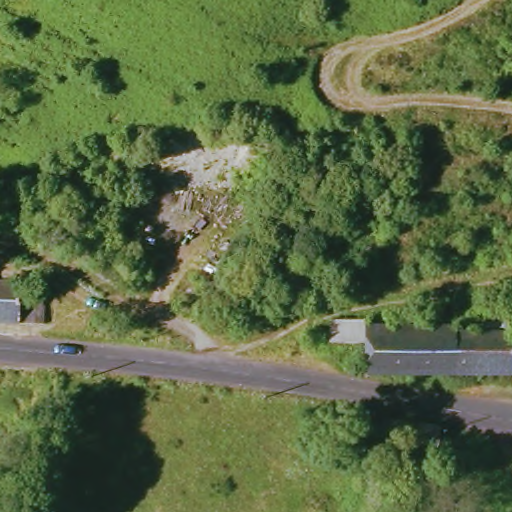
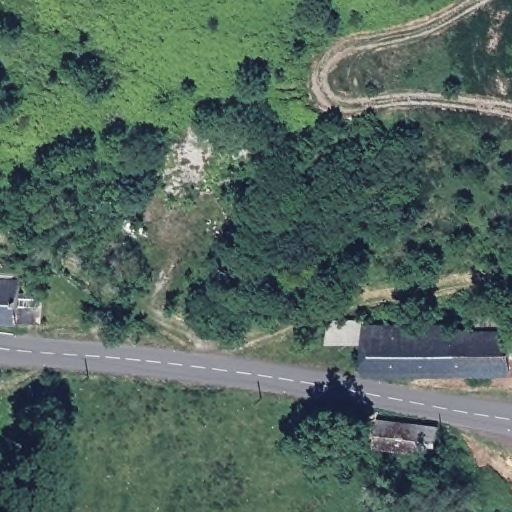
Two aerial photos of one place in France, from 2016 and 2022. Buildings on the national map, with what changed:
unchanged [(23,293),(45,296),(43,323),(0,322),(0,278),(23,280),(23,293)]
unchanged [(321,337),(324,311),(356,312),(356,324),(444,325),(445,333),(505,336),(505,348),(499,381),(354,372),(356,340),(321,337)]
unchanged [(505,348),(512,348),(512,382),(499,381),(505,348)]
unchanged [(430,458),(370,449),(376,418),(434,433),(430,458)]

